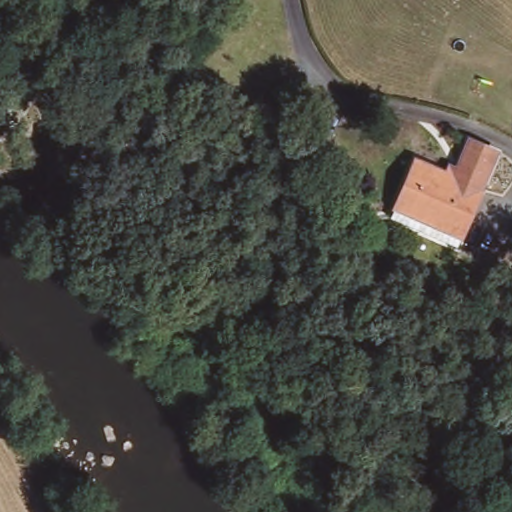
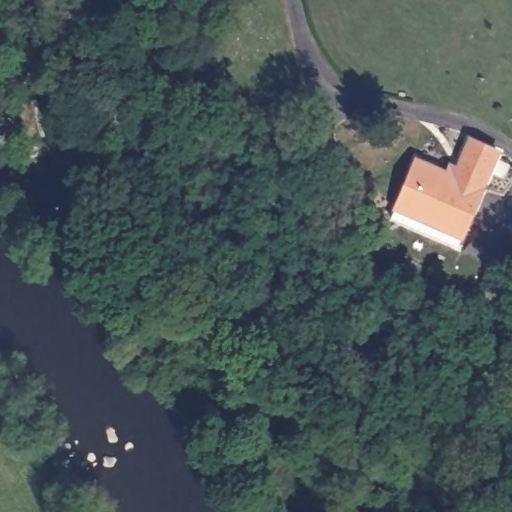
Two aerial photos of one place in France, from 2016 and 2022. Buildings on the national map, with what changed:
unchanged [(415,157),(446,170),(450,161),(457,165),(469,136),(501,151),(459,247),(390,215),(415,157)]

